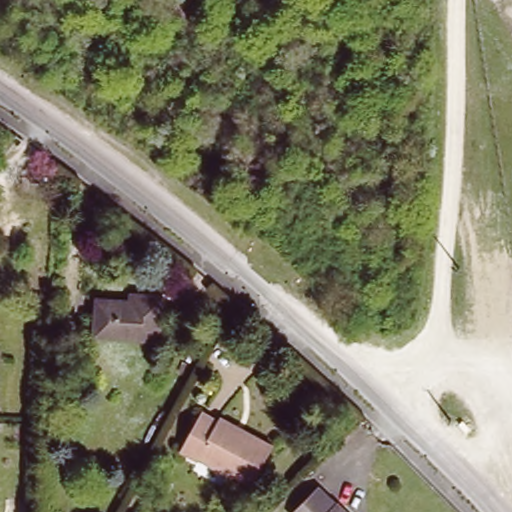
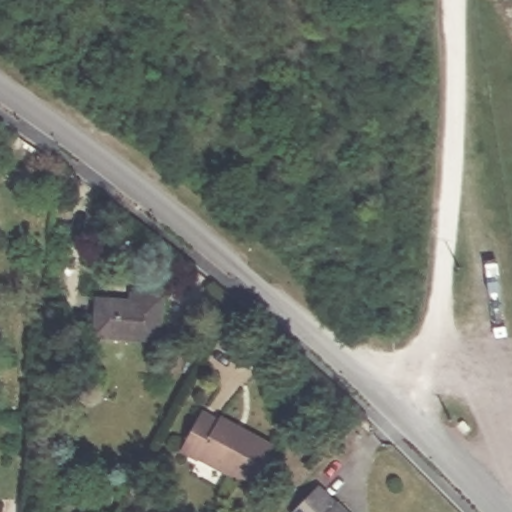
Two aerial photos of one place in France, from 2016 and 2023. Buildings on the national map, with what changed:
unchanged [(103,298),(137,298),(137,293),(167,295),(165,341),(102,337),(103,298)]
unchanged [(220,424),(222,420),(274,445),(255,484),(204,459),(201,464),(183,455),(202,415),(220,424)]
unchanged [(327,493),(343,510),(344,510),(346,512),(309,512),(327,493)]

